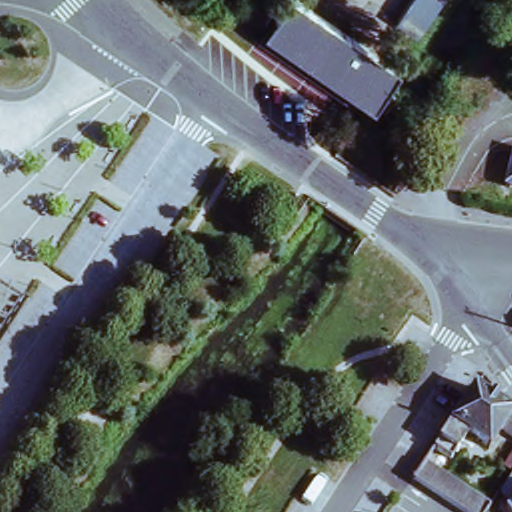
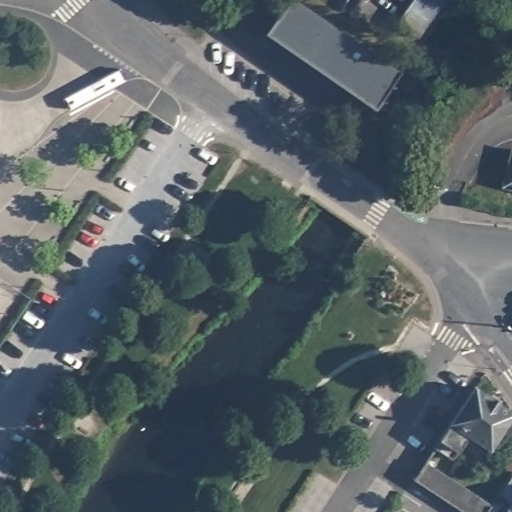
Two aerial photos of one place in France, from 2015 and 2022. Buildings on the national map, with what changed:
unchanged [(310,65),(264,31),(275,17),(269,13),(275,5),(280,9),(286,0),(297,0),(397,74),(370,109),(332,81),(325,91),(302,75),(310,65)]
unchanged [(446,0),(423,38),(400,21),(413,0),(446,0)]
unchanged [(512,146),(512,185),(500,182),(510,145),(512,146)]
unchanged [(441,445),(482,384),(512,404),(512,419),(478,469),(441,445)]
unchanged [(420,460),(486,504),(481,512),(465,512),(409,477),(412,473),(420,460)]
unchanged [(510,503),(502,492),(512,477),(512,512),(507,512),(503,507),(510,503)]

